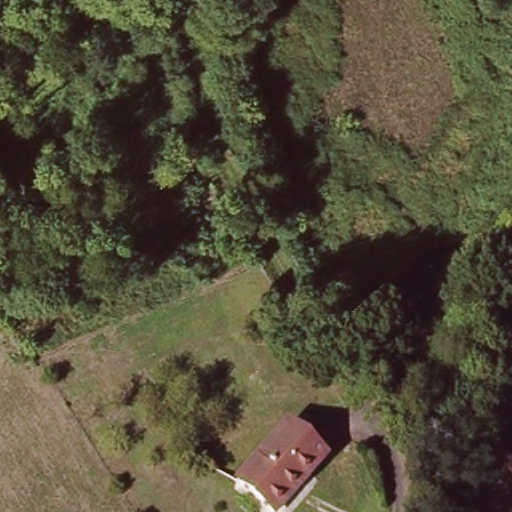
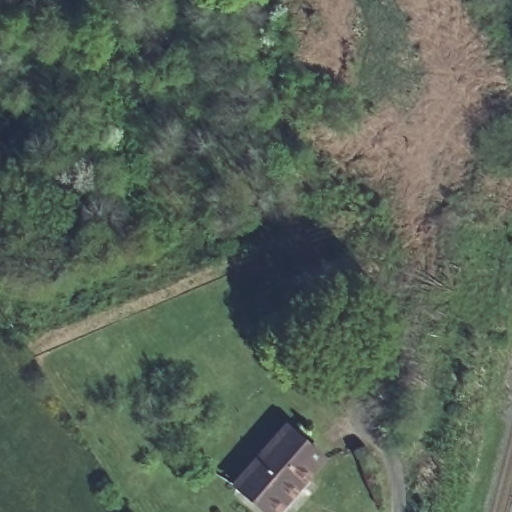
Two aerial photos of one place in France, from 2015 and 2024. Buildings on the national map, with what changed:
unchanged [(289,428),(325,460),(279,512),(265,512),(237,487),(289,428)]

